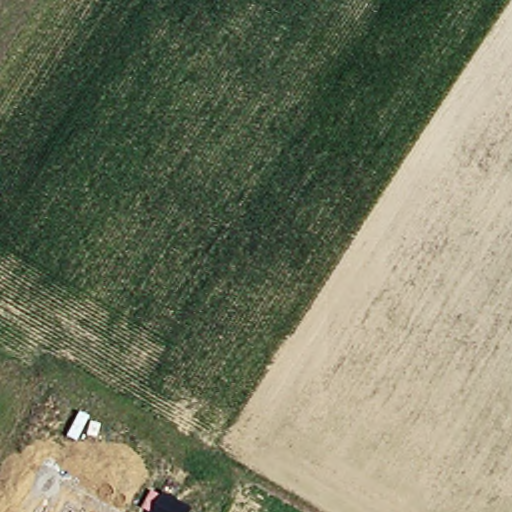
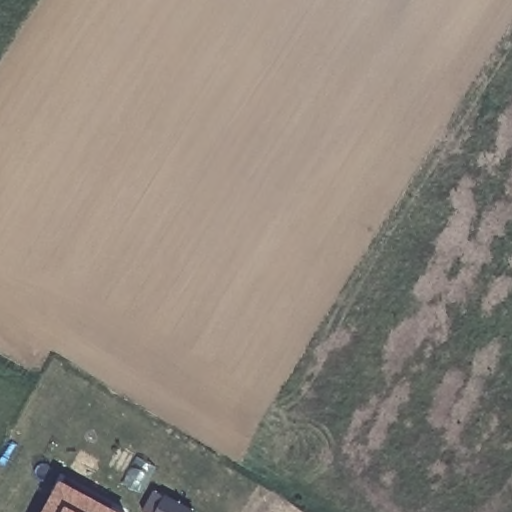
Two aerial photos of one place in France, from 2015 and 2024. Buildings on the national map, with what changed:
new [(60,477),(107,503),(124,512),(41,512),(51,492),(60,477)]
new [(156,512),(165,493),(191,507),(188,512),(156,512)]

